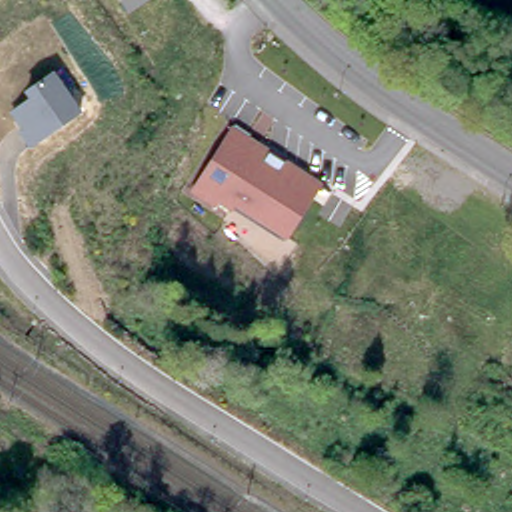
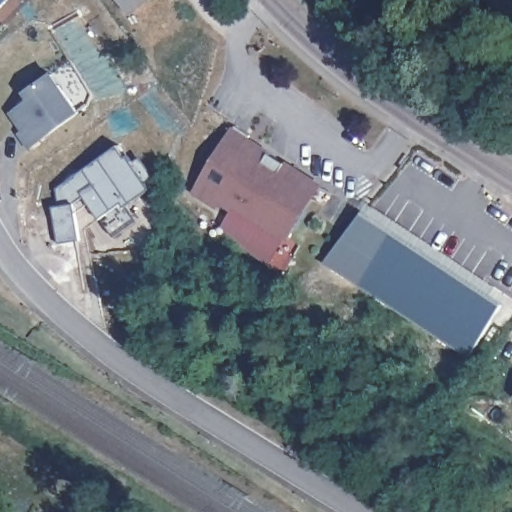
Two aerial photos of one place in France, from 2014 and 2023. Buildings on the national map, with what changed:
new [(0,0),(10,0),(0,10),(0,0)]
unchanged [(122,0),(146,0),(130,11),(122,0)]
unchanged [(82,114),(28,147),(17,129),(22,124),(14,114),(28,102),(25,94),(55,74),(82,114)]
unchanged [(321,183),(287,241),(232,205),(228,209),(221,204),(217,208),(189,189),(232,125),(321,183)]
new [(127,156),(130,154),(135,161),(142,157),(155,177),(148,181),(152,186),(126,205),(135,219),(111,235),(100,219),(90,202),(77,210),(81,238),(60,240),(55,208),(68,205),(57,188),(120,145),(127,156)]
new [(232,205),(287,241),(272,267),(216,230),(228,209),(232,205)]
new [(362,212),(392,232),(357,285),(322,262),(362,212)]
new [(392,232),(500,304),(467,358),(357,285),(392,232)]

